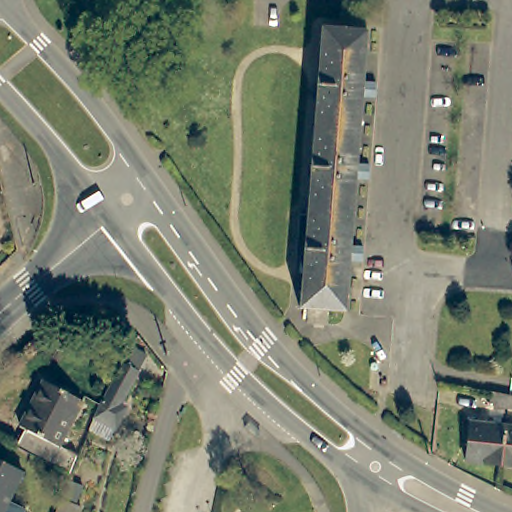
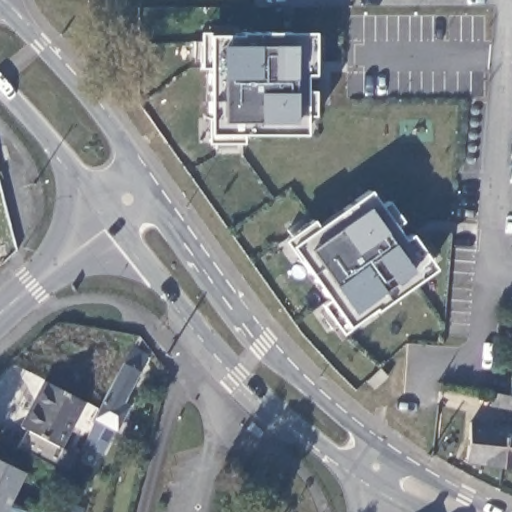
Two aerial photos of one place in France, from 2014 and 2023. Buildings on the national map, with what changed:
new [(313,73),(304,73),(305,133),(208,132),(206,36),(241,36),(241,31),(313,32),(313,73)]
demolished [(321,31),(366,34),(362,85),(372,86),(371,102),(360,101),(355,169),(366,170),(364,185),(353,184),(349,250),(359,251),(358,266),(347,265),(346,278),(303,273),(321,31)]
new [(375,311),(372,307),(347,326),(287,245),(366,187),(400,237),(409,232),(435,268),(375,311)]
demolished [(346,278),(343,313),(329,313),(328,328),(307,327),(308,311),(300,311),(303,273),(346,278)]
unchanged [(93,428),(98,417),(105,401),(136,345),(151,352),(127,402),(133,404),(120,428),(115,439),(93,428)]
new [(378,368),(386,377),(372,390),(365,381),(378,368)]
unchanged [(29,433),(23,430),(47,384),(87,405),(63,450),(80,459),(73,477),(20,450),(29,433)]
unchanged [(494,393),(510,397),(512,397),(512,411),(509,410),(492,407),(494,393)]
unchanged [(463,468),(466,429),(502,432),(498,471),(463,468)]
unchanged [(512,433),(512,472),(498,471),(502,432),(512,433)]
unchanged [(5,512),(0,512),(0,464),(22,475),(5,512)]
unchanged [(87,490),(79,507),(87,510),(87,512),(62,512),(73,484),(87,490)]

